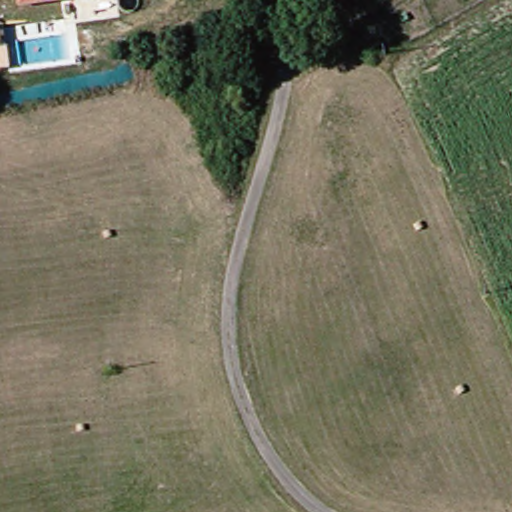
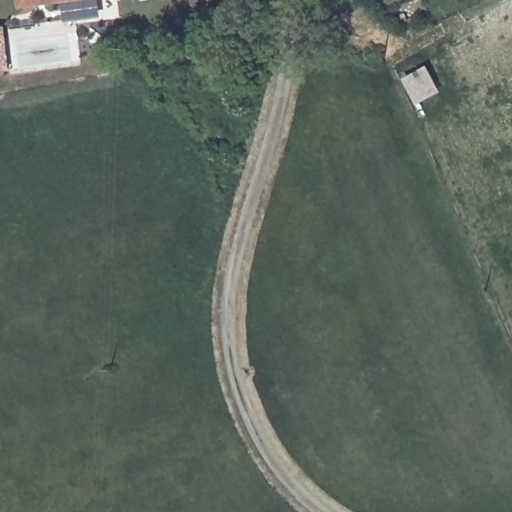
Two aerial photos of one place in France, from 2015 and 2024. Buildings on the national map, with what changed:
unchanged [(24,0),(86,0),(26,10),(24,0)]

